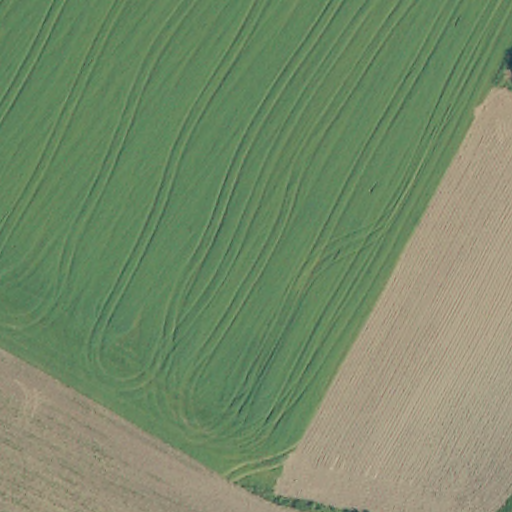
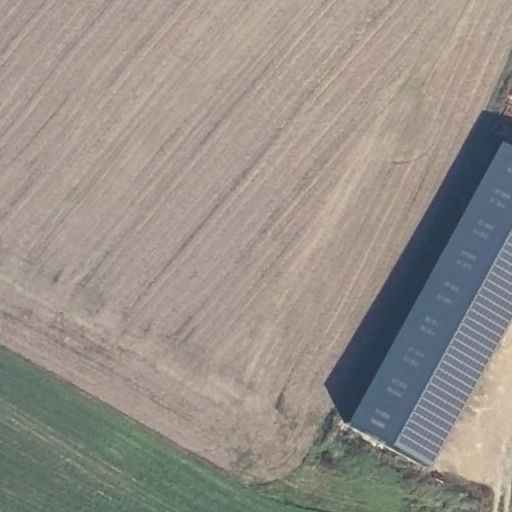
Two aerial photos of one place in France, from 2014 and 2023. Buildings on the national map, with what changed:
new [(345,422),(498,145),(512,152),(512,307),(423,466),(345,422)]

